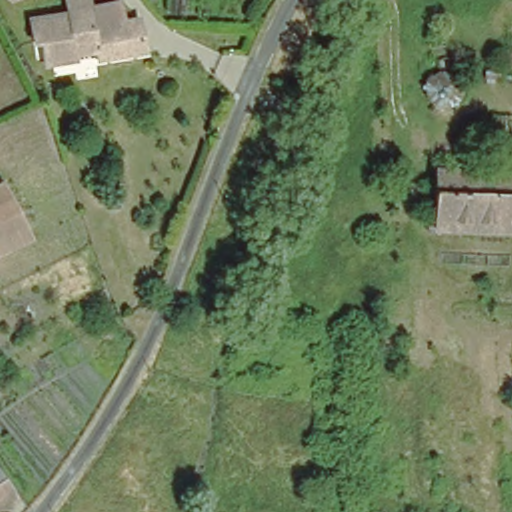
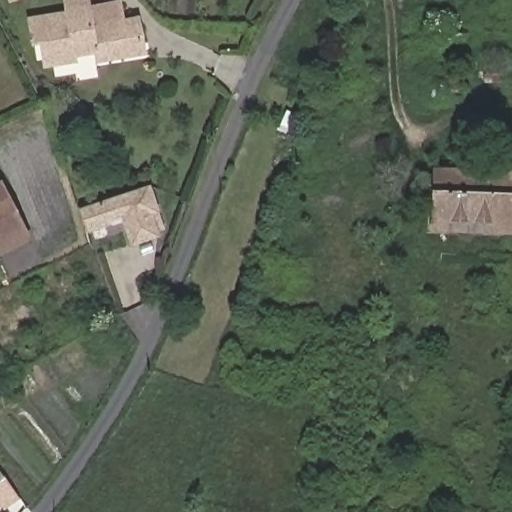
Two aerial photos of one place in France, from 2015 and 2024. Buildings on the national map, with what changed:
unchanged [(139,19),(145,51),(98,59),(96,52),(78,55),(78,60),(47,65),(43,41),(36,42),(32,20),(70,13),(69,8),(68,0),(90,0),(91,5),(91,9),(115,5),(122,4),(125,20),(125,21),(139,19)]
unchanged [(452,72),(458,79),(460,86),(459,95),(455,100),(450,105),(444,106),(437,105),(432,103),(426,97),(424,89),(426,80),(431,74),(437,70),(442,70),(452,72)]
unchanged [(512,226),(432,222),(434,165),(512,168),(512,226)]
unchanged [(15,213),(25,233),(0,245),(0,183),(15,213)]
new [(161,236),(132,246),(122,215),(109,220),(110,225),(87,231),(80,208),(150,185),(159,211),(164,229),(159,231),(161,236)]
unchanged [(3,477),(14,492),(0,502),(0,473),(3,477)]

